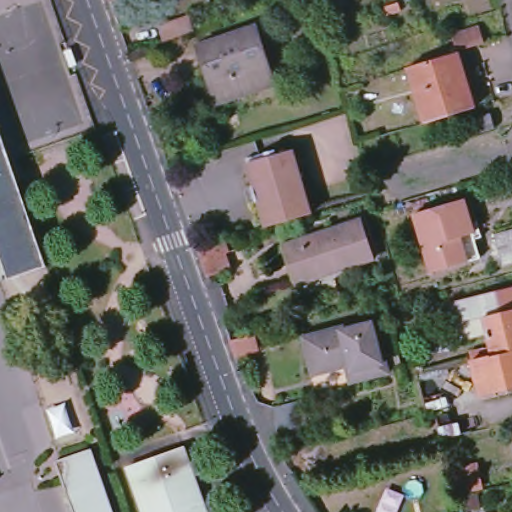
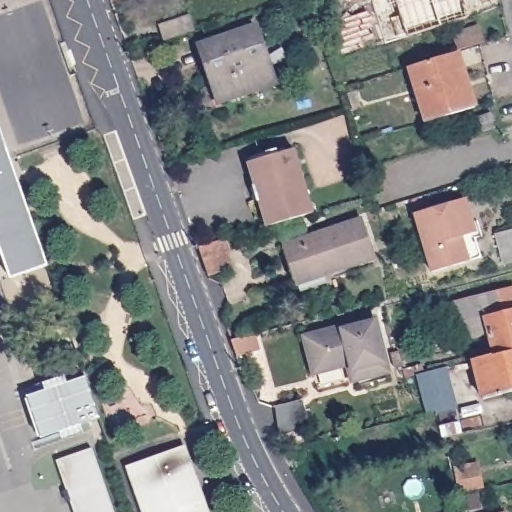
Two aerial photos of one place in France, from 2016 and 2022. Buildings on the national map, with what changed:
unchanged [(107,0),(124,0),(124,1),(109,6),(107,0)]
unchanged [(156,30),(183,21),(188,36),(161,45),(156,30)]
unchanged [(451,31),(479,22),(484,38),(456,47),(451,31)]
unchanged [(198,49),(254,31),(273,86),(218,106),(198,49)]
unchanged [(415,92),(407,66),(455,51),(464,76),(415,92)]
unchanged [(424,121),(415,92),(464,76),(473,105),(424,121)]
unchanged [(463,117),(492,109),(496,125),(467,133),(463,117)]
unchanged [(0,131),(47,267),(25,274),(10,279),(0,250),(0,131)]
unchanged [(249,173),(246,165),(292,151),(295,160),(303,188),(258,202),(249,173)]
unchanged [(303,188),(311,214),(265,228),(258,202),(303,188)]
unchanged [(461,259),(424,270),(408,211),(457,197),(467,230),(467,231),(474,256),(461,259)]
unchanged [(374,262),(313,280),(311,277),(294,282),(286,258),(283,247),(363,223),(366,234),(374,262)]
unchanged [(494,236),(512,231),(512,264),(502,267),(494,236)]
unchanged [(196,249),(221,241),(229,270),(206,277),(196,249)]
unchanged [(455,324),(451,305),(512,290),(512,310),(455,324)]
unchanged [(512,310),(512,351),(495,355),(490,334),(459,341),(455,324),(512,310)]
unchanged [(389,376),(318,394),(316,390),(304,337),(375,320),(387,371),(389,376)]
unchanged [(228,341),(254,335),(259,352),(235,359),(228,341)]
unchanged [(495,355),(512,351),(512,392),(484,399),(474,360),(495,355)]
new [(82,425),(84,433),(62,441),(58,432),(41,438),(26,398),(44,392),(41,384),(65,377),(67,384),(85,377),(99,419),(82,425)]
unchanged [(269,404),(309,392),(317,419),(273,431),(269,404)]
unchanged [(209,511),(205,512),(150,512),(134,467),(187,448),(209,511)]
unchanged [(114,512),(73,512),(55,461),(92,449),(114,512)]
unchanged [(454,472),(454,470),(481,466),(484,488),(457,493),(454,472)]

